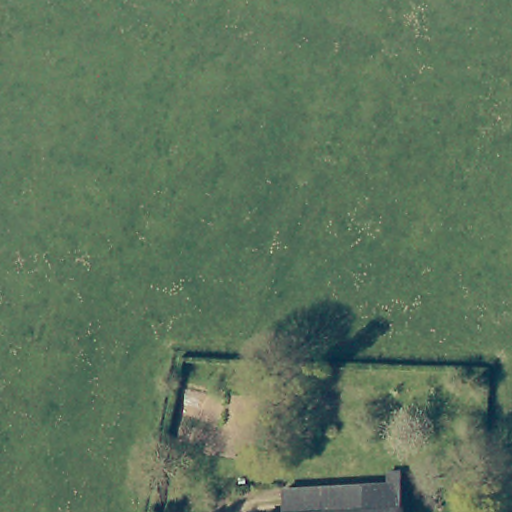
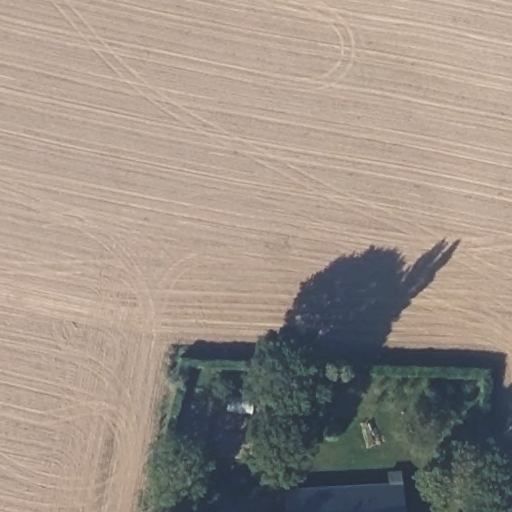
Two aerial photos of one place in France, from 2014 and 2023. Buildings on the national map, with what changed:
unchanged [(374,486),(374,480),(382,480),(382,475),(399,475),(401,512),(325,512),(324,489),(374,486)]
unchanged [(324,489),(325,512),(286,512),(285,491),(324,489)]

